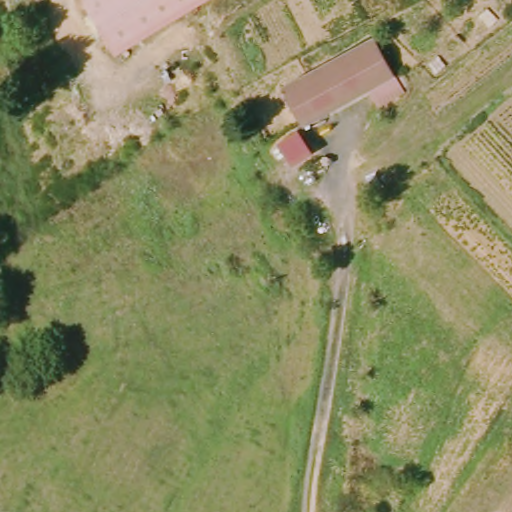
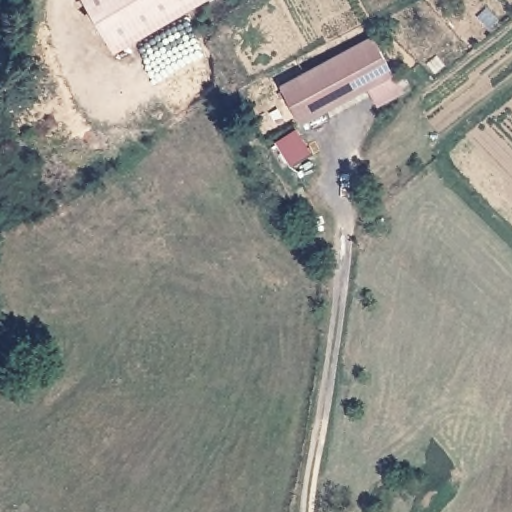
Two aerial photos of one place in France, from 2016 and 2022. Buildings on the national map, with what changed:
unchanged [(207,0),(113,53),(83,0),(207,0)]
unchanged [(388,71),(301,124),(280,85),(364,35),(388,71)]

